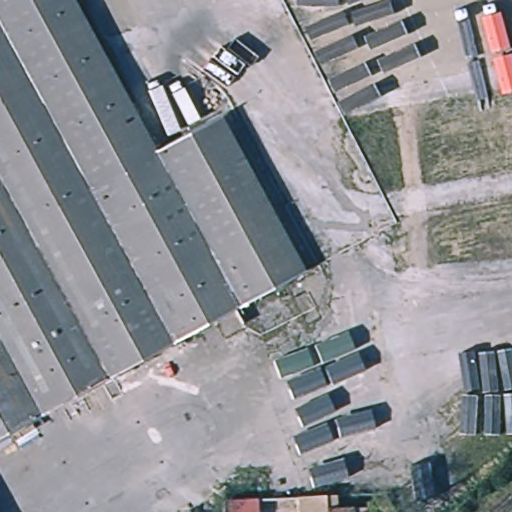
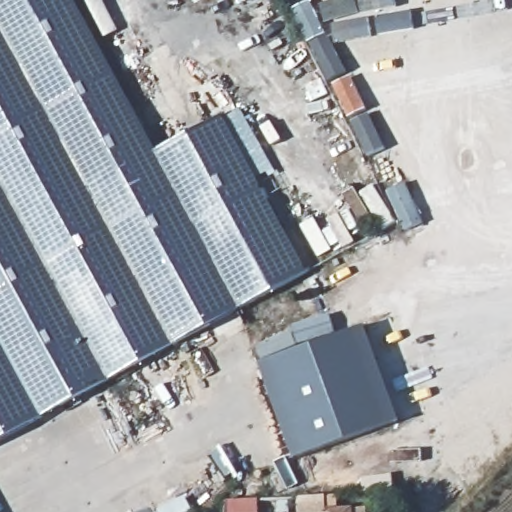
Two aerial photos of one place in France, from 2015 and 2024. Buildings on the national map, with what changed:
unchanged [(240,155),(305,273),(291,280),(175,345),(0,33),(0,0),(74,0),(158,151),(221,120),(240,155)]
unchanged [(0,33),(175,345),(0,441),(0,33)]
new [(364,325),(398,421),(295,460),(260,364),(364,325)]
unchanged [(337,509),(366,507),(366,512),(298,512),(296,495),(336,492),(337,509)]
unchanged [(257,512),(226,512),(226,502),(256,500),(257,512)]
unchanged [(190,512),(181,512),(187,508),(190,512)]

